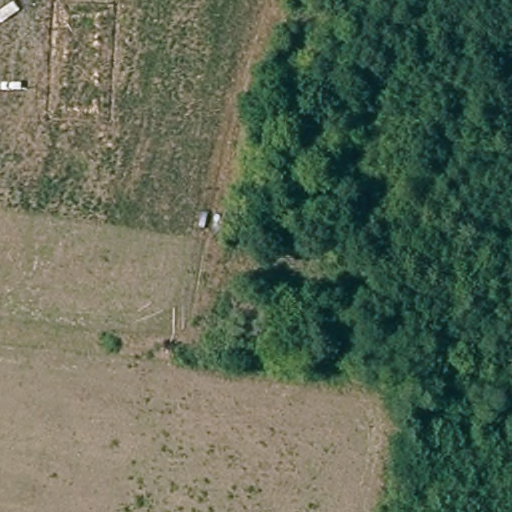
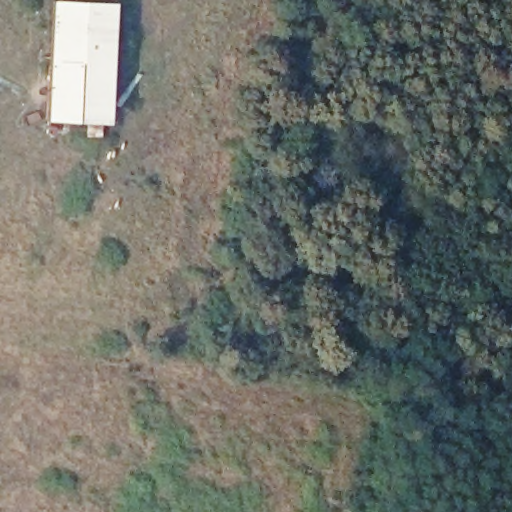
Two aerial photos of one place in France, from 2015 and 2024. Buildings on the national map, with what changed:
new [(119,0),(113,124),(45,121),(51,0),(119,0)]

